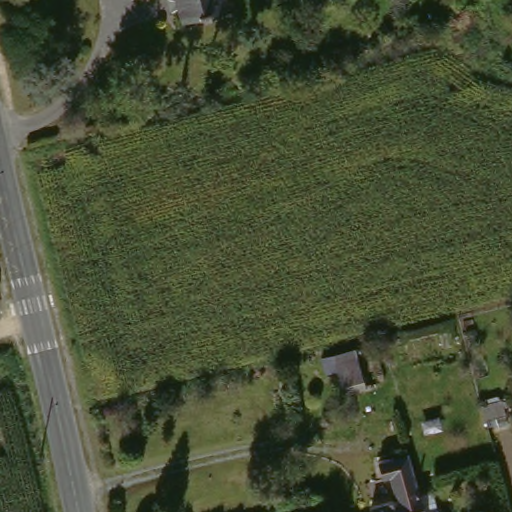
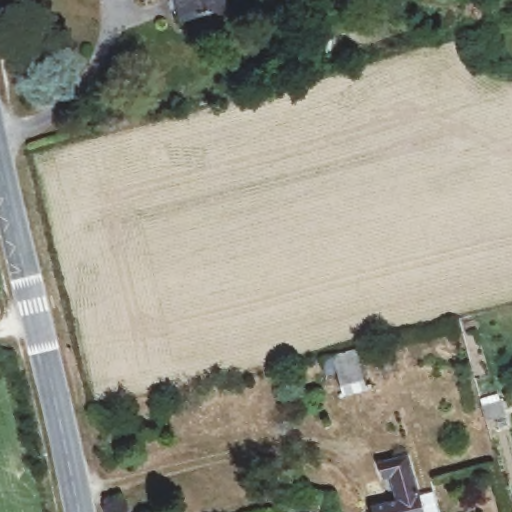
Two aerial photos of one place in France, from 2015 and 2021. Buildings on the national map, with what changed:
unchanged [(176,29),(167,0),(214,0),(219,16),(176,29)]
unchanged [(346,383),(340,361),(329,364),(325,349),(369,337),(373,351),(382,349),(387,369),(368,374),(369,377),(346,383)]
unchanged [(505,391),(508,405),(488,409),(485,395),(505,391)]
unchanged [(391,508),(384,484),(377,486),(373,470),(402,463),(412,503),(425,500),(428,512),(377,512),(391,508)]

